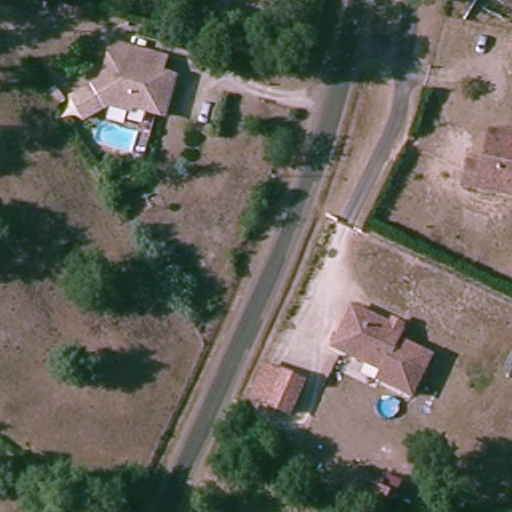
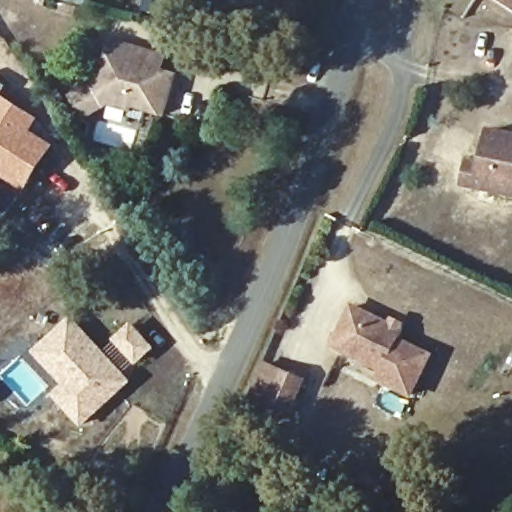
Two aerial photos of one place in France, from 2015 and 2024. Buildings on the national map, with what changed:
unchanged [(507,0),(512,0),(512,4),(507,0)]
unchanged [(171,110),(139,100),(138,105),(116,98),(83,120),(67,98),(109,74),(121,35),(141,42),(136,57),(183,71),(171,110)]
new [(3,95),(40,119),(33,131),(54,145),(24,194),(4,181),(0,186),(0,81),(9,87),(3,95)]
unchanged [(512,132),(512,192),(472,183),(478,160),(492,163),(499,130),(512,132)]
unchanged [(407,327),(402,336),(434,353),(414,392),(382,375),(387,366),(339,341),(359,303),(407,327)]
new [(72,315),(133,381),(80,429),(50,396),(61,385),(31,352),(72,315)]
new [(131,322),(155,348),(134,368),(109,342),(131,322)]
unchanged [(291,411),(271,402),(286,370),(306,379),(291,411)]

